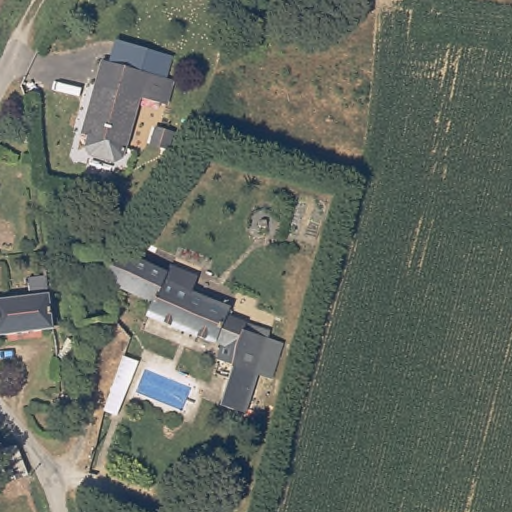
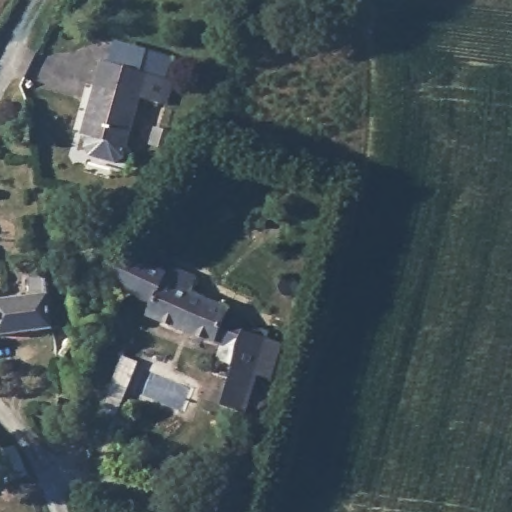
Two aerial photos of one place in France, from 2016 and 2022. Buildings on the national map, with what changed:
unchanged [(127,160),(118,169),(94,164),(88,155),(90,142),(84,140),(101,64),(164,79),(175,81),(168,110),(157,107),(140,103),(127,160)]
unchanged [(289,350),(286,358),(275,386),(261,381),(219,364),(224,350),(151,318),(158,304),(115,286),(111,256),(134,257),(172,272),(176,265),(193,273),(192,276),(220,288),(214,303),(236,311),(232,322),(253,329),(275,336),(273,344),(288,349),(289,350)]
unchanged [(7,338),(7,326),(0,327),(0,293),(4,292),(5,301),(37,299),(36,280),(52,279),(60,332),(7,338)]
unchanged [(55,417),(42,413),(45,388),(58,389),(58,392),(58,397),(77,400),(73,422),(55,417)]
unchanged [(5,489),(3,481),(0,466),(0,452),(15,449),(16,451),(28,481),(17,485),(5,489)]

